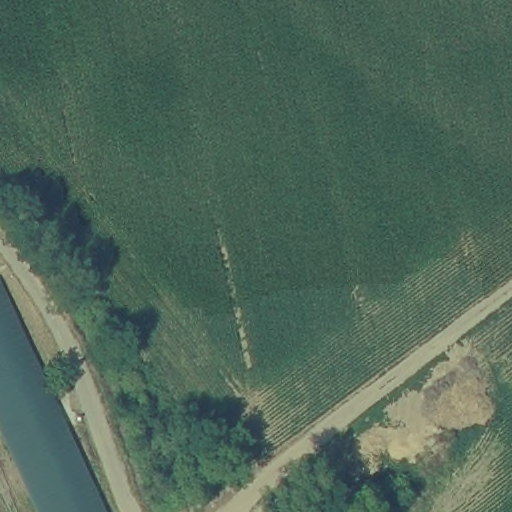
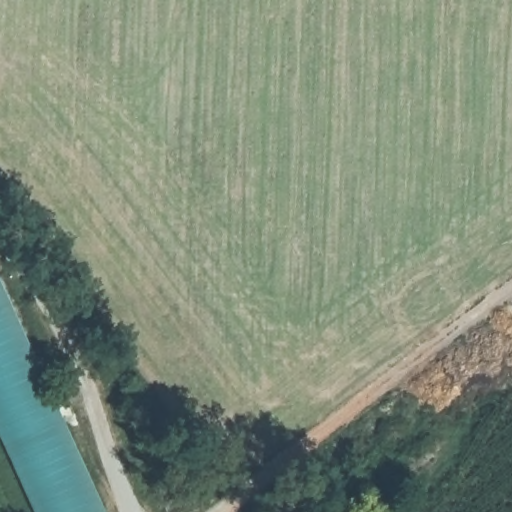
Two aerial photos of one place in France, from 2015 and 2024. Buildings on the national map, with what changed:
unchanged [(0,428),(0,279),(105,512),(38,512),(0,428)]

